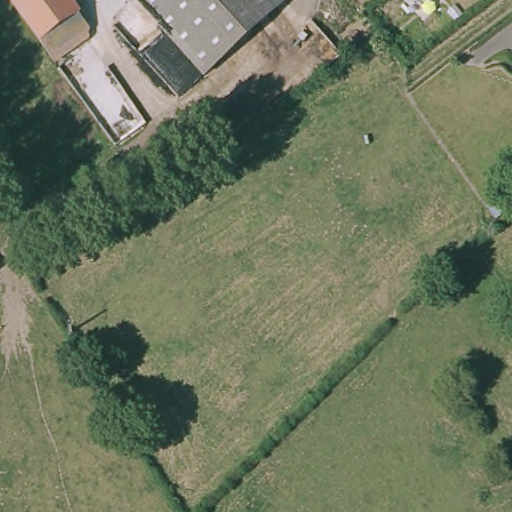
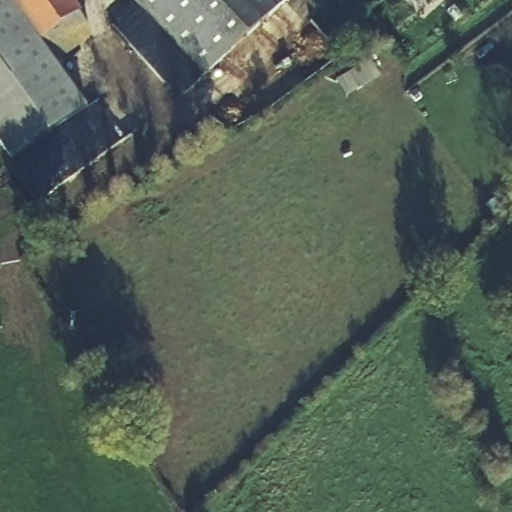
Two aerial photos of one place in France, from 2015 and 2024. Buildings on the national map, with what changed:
new [(25,31),(30,37),(47,60),(52,56),(87,107),(12,162),(0,145),(0,0),(4,0),(25,31)]
unchanged [(85,33),(47,60),(30,37),(25,31),(4,0),(61,0),(85,33)]
unchanged [(195,75),(131,2),(134,0),(281,0),(195,75)]
unchanged [(512,338),(512,341),(510,338),(512,338)]

